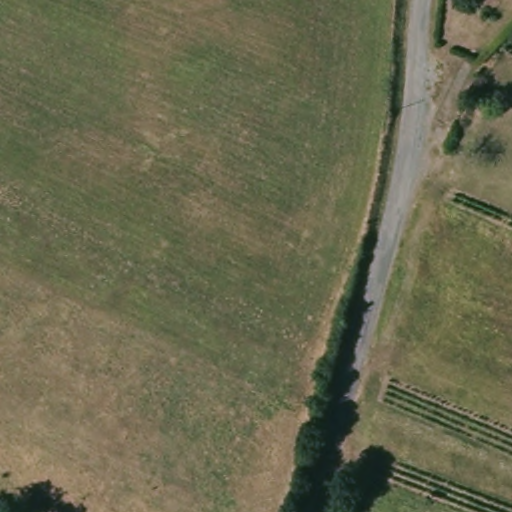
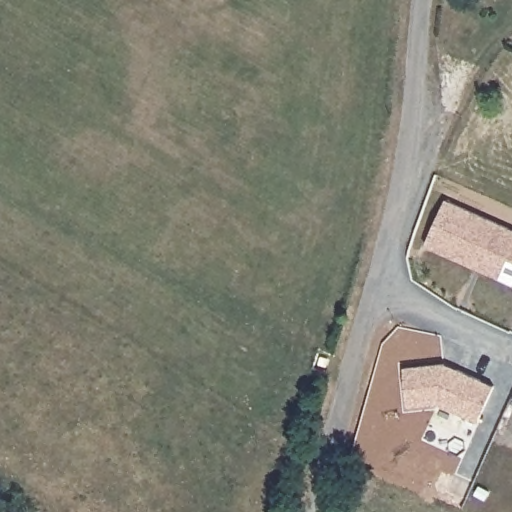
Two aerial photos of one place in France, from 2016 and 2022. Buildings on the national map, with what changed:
new [(445,200),(512,229),(512,259),(509,257),(499,279),(425,246),(445,200)]
new [(438,405),(407,408),(403,368),(446,364),(494,386),(478,422),(438,405)]

